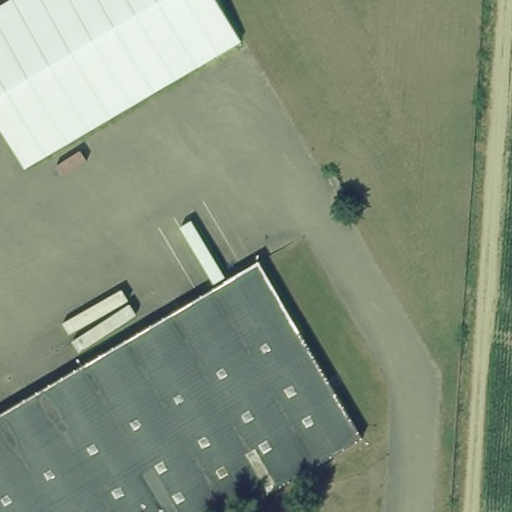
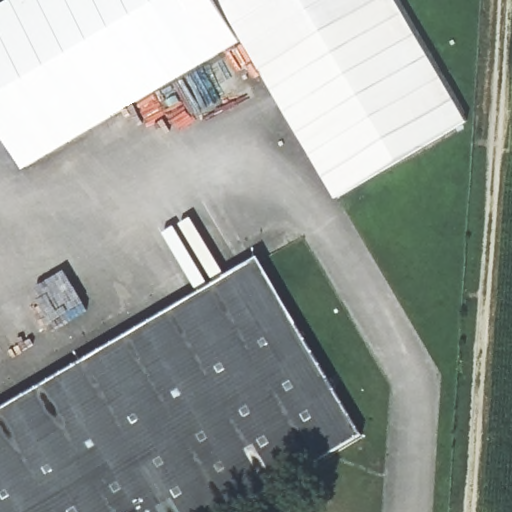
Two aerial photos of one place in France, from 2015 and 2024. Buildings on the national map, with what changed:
unchanged [(4,0),(220,0),(243,39),(29,171),(0,122),(0,3),(4,0)]
new [(220,0),(394,0),(467,124),(334,198),(243,39),(220,0)]
unchanged [(264,260),(368,437),(241,512),(0,512),(0,416),(264,260)]

